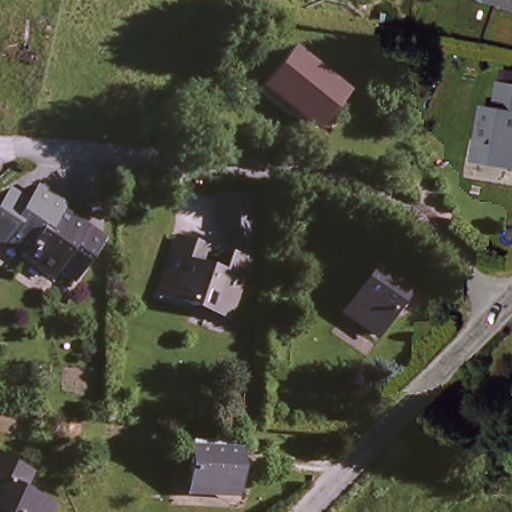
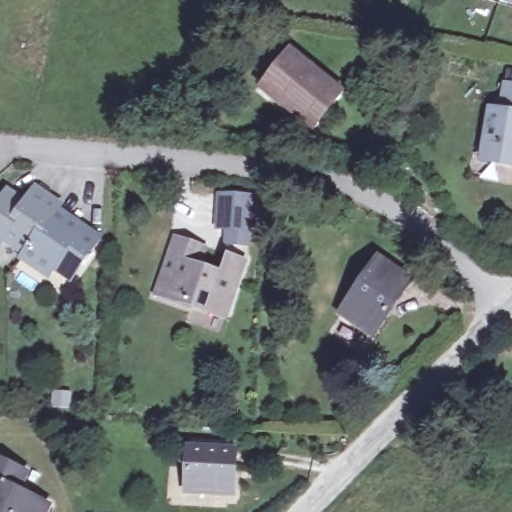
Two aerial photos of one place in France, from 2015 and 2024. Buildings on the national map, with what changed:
unchanged [(372,19),(292,5),(293,0),(373,0),(372,19)]
unchanged [(504,0),(512,0),(512,3),(504,0)]
unchanged [(260,92),(266,83),(290,52),(342,93),(314,128),(292,110),(289,114),(260,92)]
unchanged [(512,84),(512,164),(484,158),(494,108),(504,111),(510,83),(512,84)]
unchanged [(63,211),(34,252),(12,237),(7,244),(0,239),(0,214),(12,197),(16,191),(34,203),(42,192),(65,208),(63,211)]
unchanged [(255,205),(252,254),(232,253),(232,238),(222,237),(224,203),(255,205)]
unchanged [(87,227),(85,229),(102,242),(80,276),(62,264),(56,271),(32,254),(34,252),(63,211),(87,227)]
unchanged [(219,320),(163,301),(181,249),(202,256),(210,258),(204,274),(228,283),(235,265),(249,271),(237,305),(231,324),(219,320)]
unchanged [(347,306),(382,257),(410,277),(402,290),(404,291),(376,333),(356,319),(344,311),(347,306)]
unchanged [(442,448),(454,419),(497,435),(486,465),(442,448)]
unchanged [(240,451),(238,495),(187,493),(189,447),(240,451)]
unchanged [(18,489),(52,505),(50,512),(0,512),(0,460),(27,472),(18,489)]

